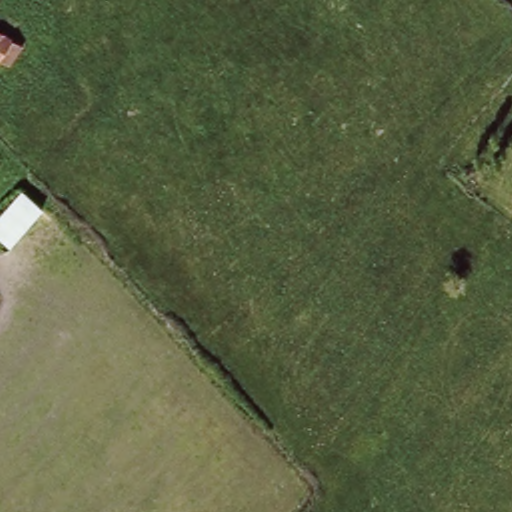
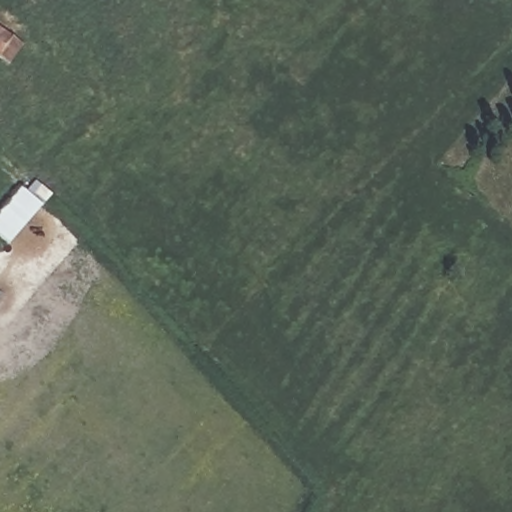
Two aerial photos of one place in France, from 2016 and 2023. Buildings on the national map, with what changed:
unchanged [(0,25),(0,23),(1,24),(0,25)]
unchanged [(8,68),(0,61),(0,35),(21,51),(8,68)]
unchanged [(43,207),(8,249),(0,240),(0,210),(19,187),(43,207)]

